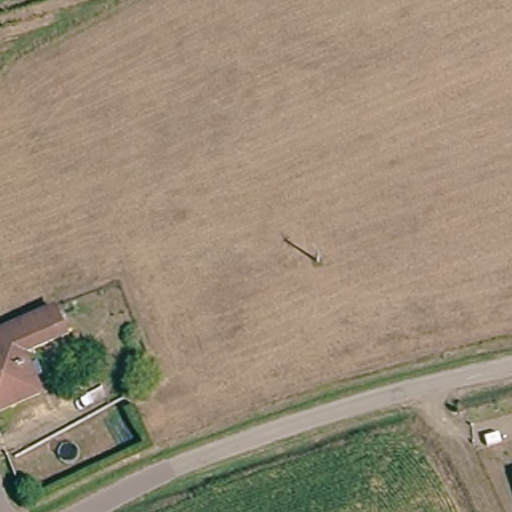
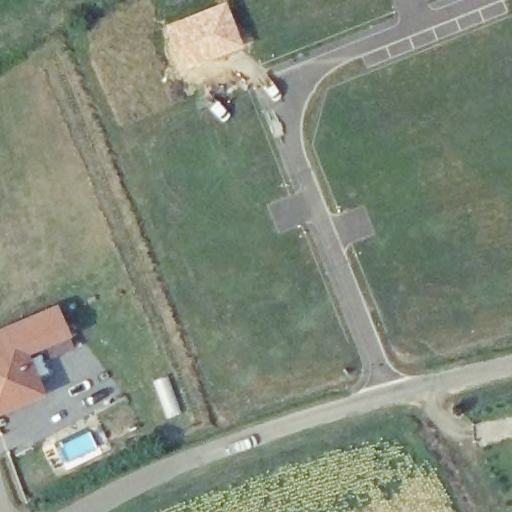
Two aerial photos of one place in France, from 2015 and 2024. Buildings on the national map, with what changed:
new [(226,0),(244,47),(182,70),(166,24),(226,0)]
unchanged [(0,354),(0,327),(51,306),(61,329),(0,354)]
unchanged [(0,407),(0,354),(61,329),(87,318),(96,342),(31,368),(39,392),(0,407)]

